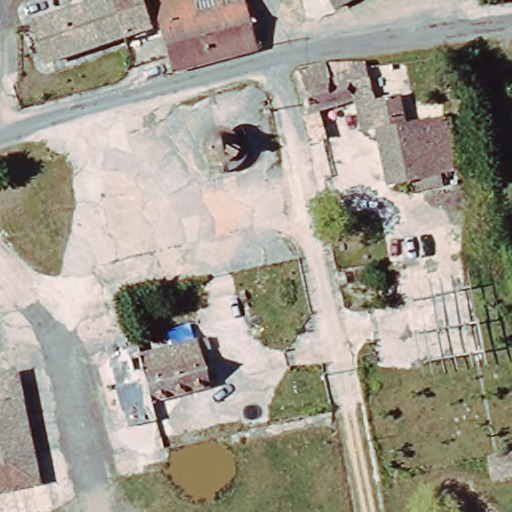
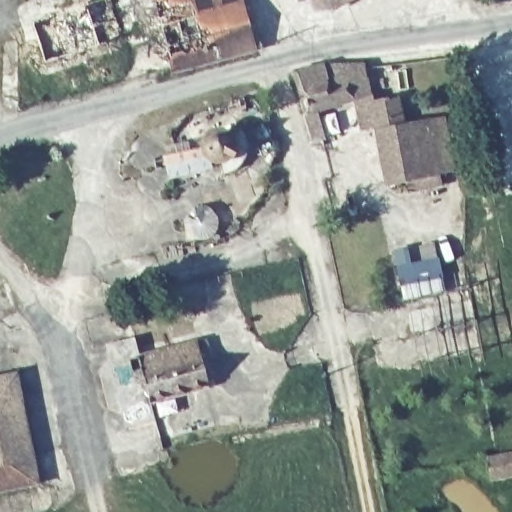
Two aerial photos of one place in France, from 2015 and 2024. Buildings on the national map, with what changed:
unchanged [(141,32),(45,64),(31,22),(83,4),(81,0),(131,0),(141,32)]
unchanged [(155,1),(159,0),(243,0),(256,49),(174,71),(155,1)]
unchanged [(333,7),(330,0),(347,0),(333,7)]
unchanged [(437,170),(439,182),(408,186),(406,178),(387,181),(375,122),(362,125),(357,98),(307,109),(303,92),(298,67),(325,63),(363,62),(369,100),(397,94),(402,123),(428,118),(444,115),(453,168),(437,170)]
unchanged [(204,148),(207,143),(210,140),(215,137),(222,137),(227,140),(237,133),(243,144),(243,153),(240,165),(235,171),(223,179),(222,166),(215,166),(210,164),(207,160),(204,155),(204,148)]
new [(445,292),(402,300),(394,251),(435,243),(445,292)]
unchanged [(207,385),(149,400),(138,357),(196,342),(207,385)]
unchanged [(14,379),(36,486),(0,494),(0,382),(14,379)]
unchanged [(512,454),(512,475),(491,480),(487,460),(512,454)]

